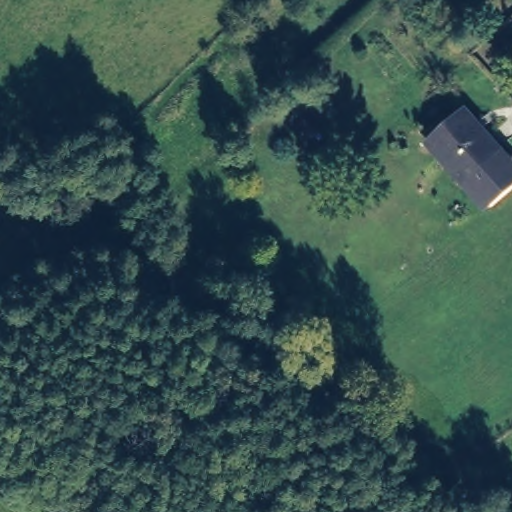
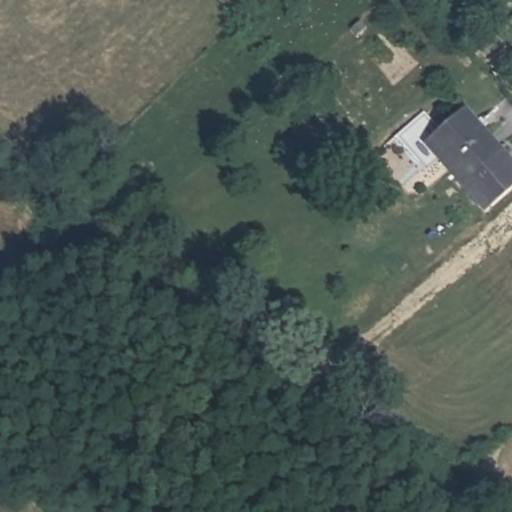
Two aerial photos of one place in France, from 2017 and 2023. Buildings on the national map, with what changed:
unchanged [(495,155),(512,173),(512,189),(491,207),(477,191),(483,185),(474,174),(462,185),(439,159),(442,156),(428,141),(465,109),(502,150),(495,155)]

